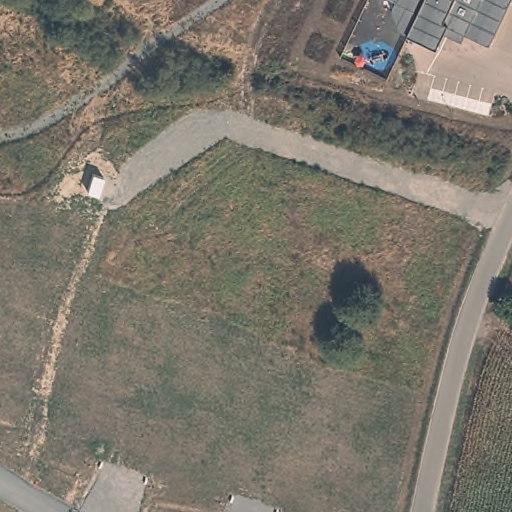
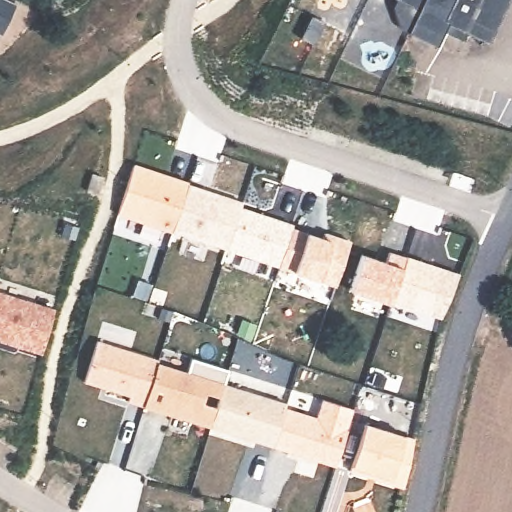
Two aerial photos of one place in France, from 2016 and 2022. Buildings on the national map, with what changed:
unchanged [(437,45),(408,33),(401,29),(393,7),(397,0),(509,0),(491,43),(466,32),(462,40),(444,32),(437,45)]
new [(134,164),(242,200),(239,206),(294,224),(292,229),(279,267),(172,232),(171,234),(117,215),(134,164)]
new [(323,239),(325,234),(333,237),(351,242),(336,286),(279,267),(292,229),(323,239)]
new [(406,257),(458,275),(441,319),(392,302),(406,257)]
new [(55,310),(42,355),(20,348),(21,345),(0,339),(0,292),(55,310)]
new [(97,341),(159,361),(157,364),(144,407),(129,402),(131,397),(85,382),(97,341)]
new [(157,364),(187,373),(192,359),(229,370),(224,385),(211,428),(169,415),(170,409),(162,407),(161,412),(144,407),(157,364)]
new [(224,385),(286,404),(285,408),(272,447),(258,442),(258,440),(240,434),(240,436),(211,428),(224,385)]
new [(285,408),(317,418),(322,400),(353,409),(336,467),(272,447),(285,408)]
new [(365,424),(405,437),(392,479),(367,472),(366,476),(350,471),(365,424)]

